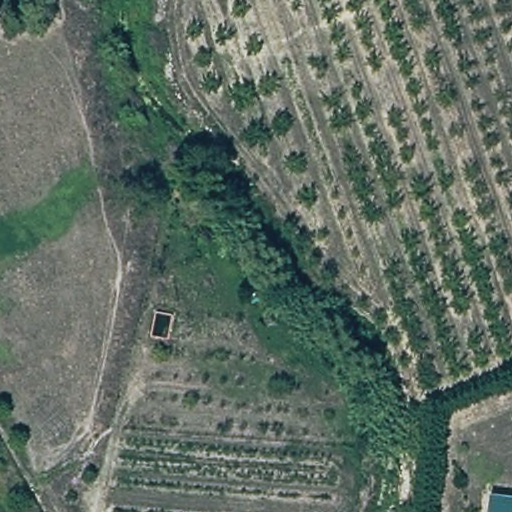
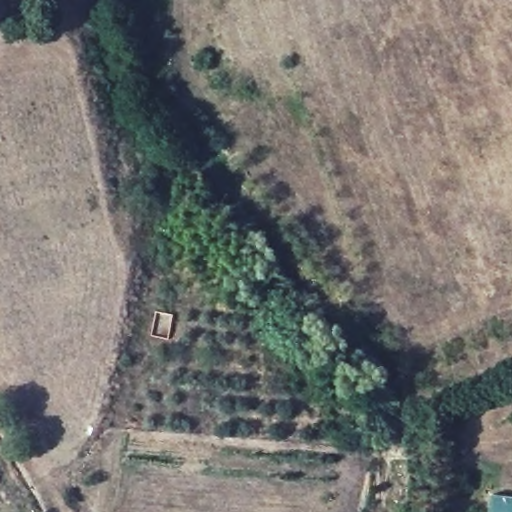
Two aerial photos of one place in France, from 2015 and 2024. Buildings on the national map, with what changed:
unchanged [(512,496),(512,512),(488,512),(491,494),(512,496)]

